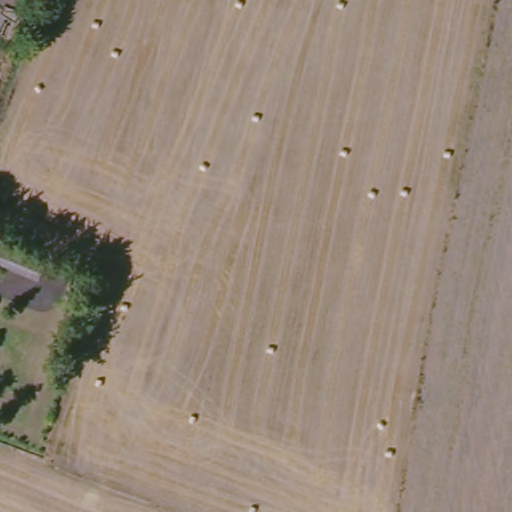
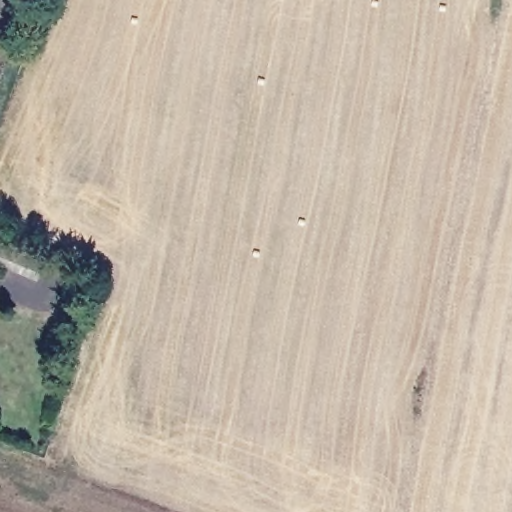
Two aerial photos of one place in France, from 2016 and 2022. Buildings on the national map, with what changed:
unchanged [(37,281),(0,265),(0,248),(43,267),(37,281)]

